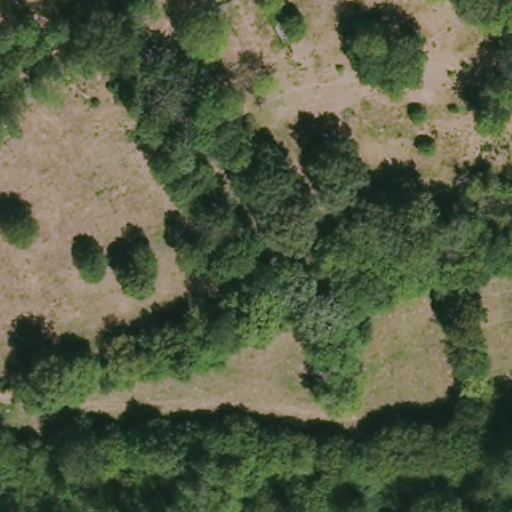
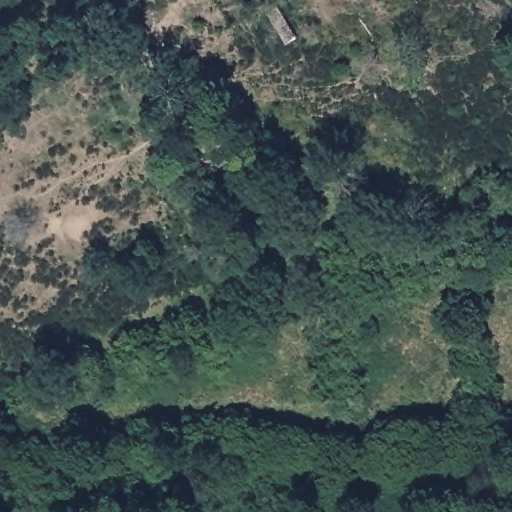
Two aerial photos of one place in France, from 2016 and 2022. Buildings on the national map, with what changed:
unchanged [(157,58),(147,65),(132,44),(143,37),(157,58)]

